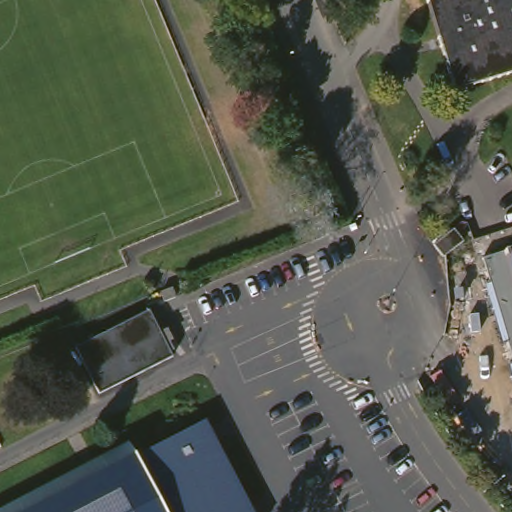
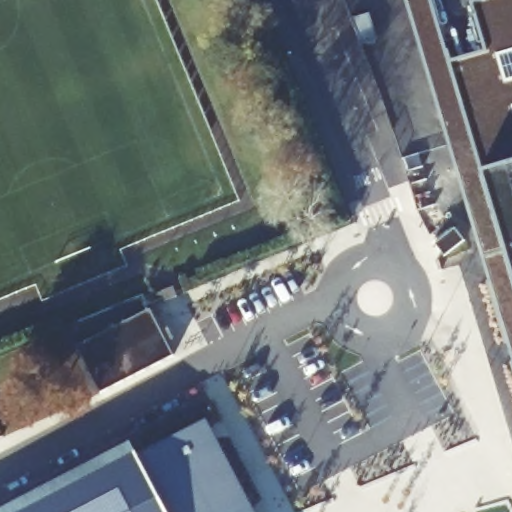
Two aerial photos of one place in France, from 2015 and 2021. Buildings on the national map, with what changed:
new [(486,283),(489,282),(405,0),(512,0),(512,369),(486,283)]
demolished [(459,90),(432,0),(512,0),(512,74),(459,90)]
unchanged [(434,242),(455,227),(464,239),(443,254),(434,242)]
unchanged [(74,345),(149,309),(171,351),(169,351),(90,391),(74,345)]
unchanged [(140,452),(212,416),(261,512),(0,512),(0,506),(133,437),(140,452)]

